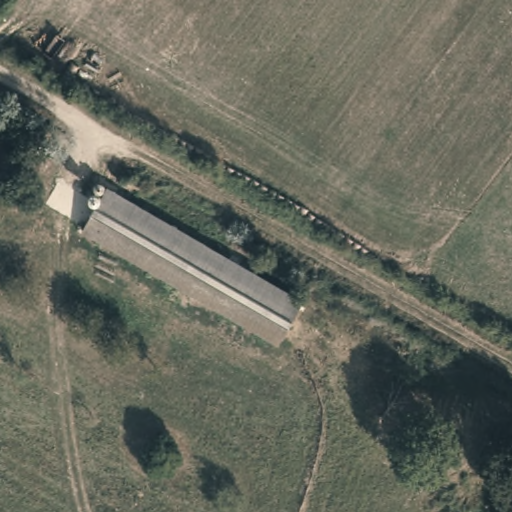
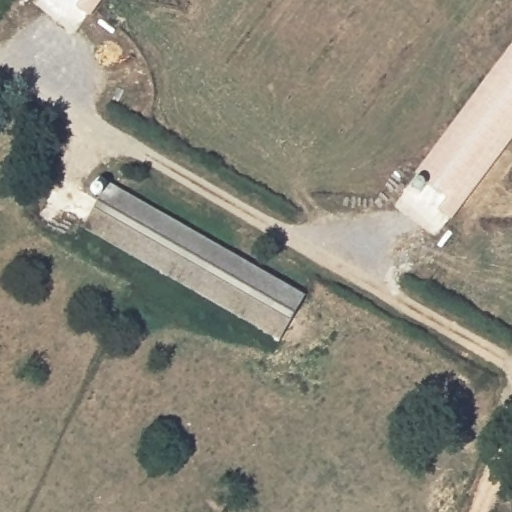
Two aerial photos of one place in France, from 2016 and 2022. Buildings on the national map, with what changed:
new [(94,9),(82,0),(100,0),(94,9)]
new [(512,135),(457,209),(414,176),(512,44),(512,135)]
unchanged [(302,293),(280,332),(88,228),(82,224),(100,192),(106,181),(302,293)]

